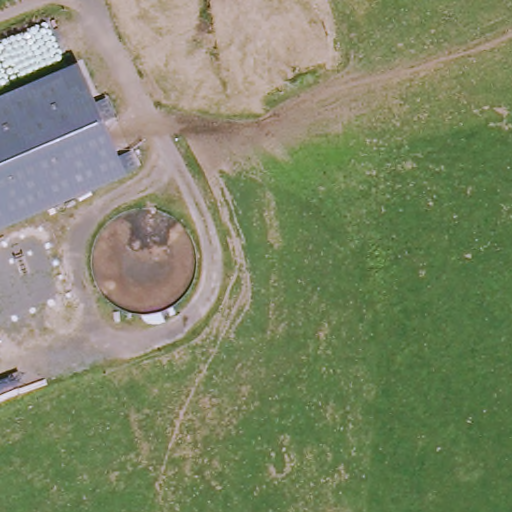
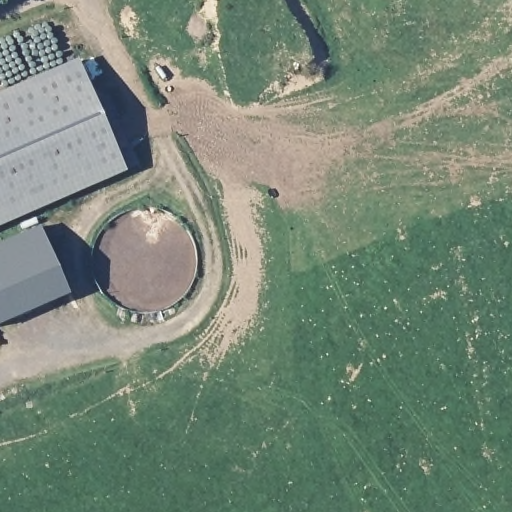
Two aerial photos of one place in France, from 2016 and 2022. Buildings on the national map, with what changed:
unchanged [(79,64),(126,174),(0,228),(0,98),(79,64)]
new [(62,260),(71,297),(0,327),(0,246),(41,228),(62,260)]

